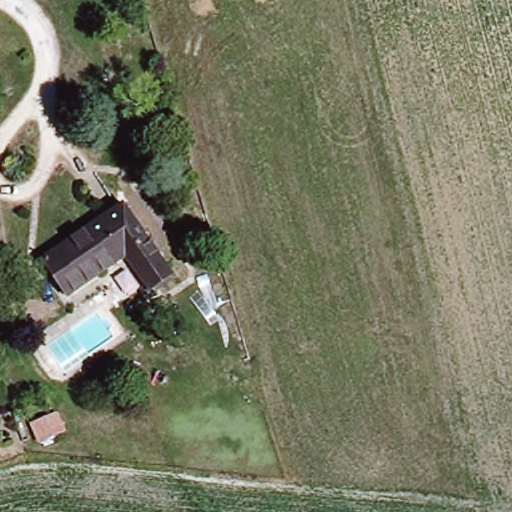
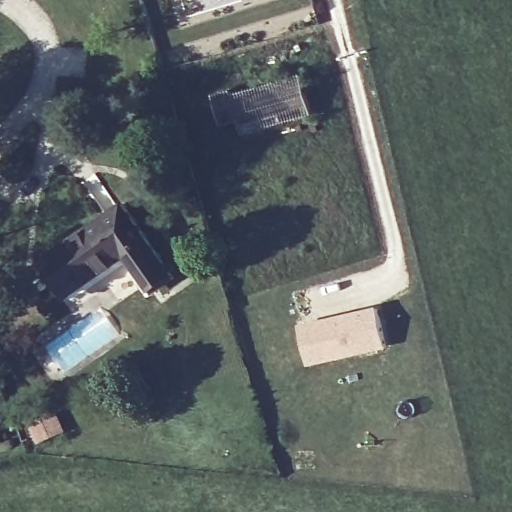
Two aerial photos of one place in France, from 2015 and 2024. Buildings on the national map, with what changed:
new [(241,141),(239,135),(236,121),(219,125),(210,95),(227,90),(229,95),(300,75),(310,112),(280,122),(281,129),(241,141)]
unchanged [(60,293),(36,256),(120,203),(168,278),(130,302),(106,263),(60,293)]
new [(336,318),(338,325),(352,321),(350,316),(376,310),(384,346),(308,365),(299,328),(336,318)]

